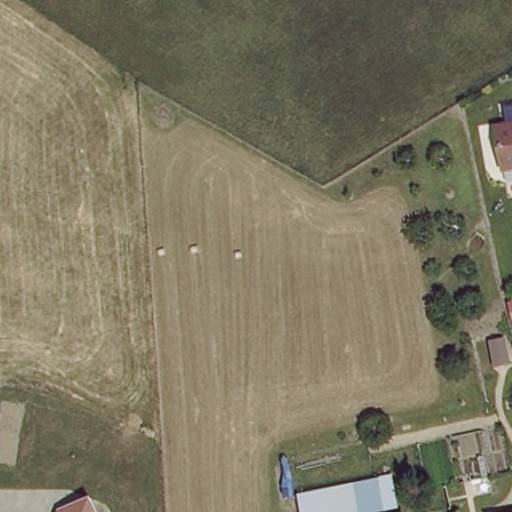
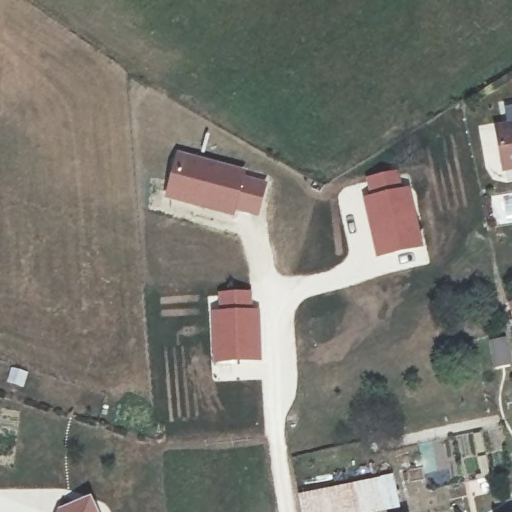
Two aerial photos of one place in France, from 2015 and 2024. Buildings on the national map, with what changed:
unchanged [(512,122),(512,159),(501,160),(495,125),(512,122)]
new [(246,169),(233,217),(163,199),(177,151),(246,169)]
new [(370,194),(366,176),(398,170),(402,187),(410,185),(423,247),(375,258),(362,195),(370,194)]
new [(216,308),(216,291),(251,290),(252,308),(259,307),(262,362),(210,364),(208,308),(216,308)]
unchanged [(396,479),(405,512),(303,512),(300,497),(396,479)]
unchanged [(58,510),(91,498),(97,512),(57,512),(58,510)]

